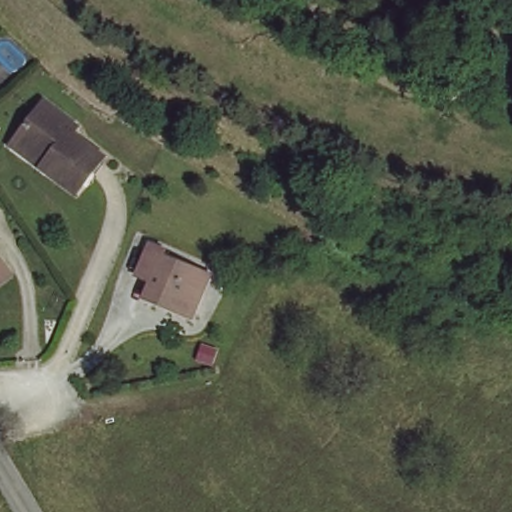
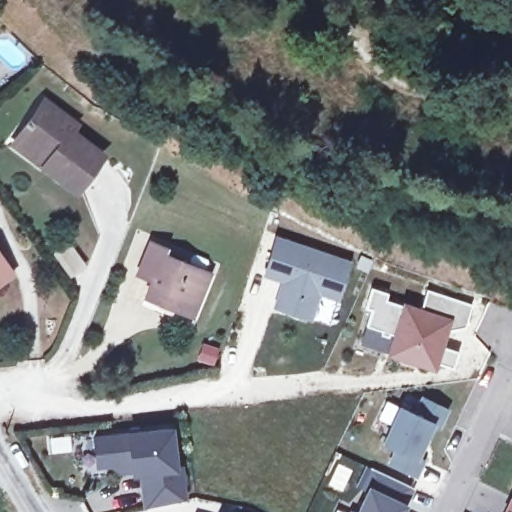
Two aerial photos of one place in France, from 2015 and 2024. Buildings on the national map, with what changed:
unchanged [(101,158),(76,193),(43,169),(48,161),(18,139),(43,105),(74,128),(70,134),(101,158)]
new [(300,316),(279,309),(290,279),(271,272),(282,240),(355,266),(343,301),(324,295),(320,306),(315,321),(300,316)]
unchanged [(179,317),(158,309),(148,305),(156,284),(142,279),(153,251),(168,257),(166,263),(212,281),(198,314),(195,324),(179,317)]
unchanged [(8,276),(0,282),(0,264),(8,276)]
new [(393,296),(391,303),(425,314),(432,293),(477,308),(470,330),(455,333),(450,331),(445,348),(463,354),(457,370),(439,364),(437,370),(395,355),(401,338),(394,335),(393,339),(385,336),(386,333),(371,328),(376,311),(368,309),(374,290),(393,296)]
new [(401,451),(387,445),(404,409),(419,416),(427,400),(452,411),(443,429),(436,425),(421,459),(428,462),(420,478),(394,466),(401,451)]
new [(174,426),(179,466),(183,466),(187,501),(141,509),(137,475),(118,476),(110,468),(95,470),(91,436),(174,426)]
new [(373,492),(368,490),(377,470),(416,489),(405,512),(363,512),(373,492)]
new [(512,510),(512,512),(511,512),(512,510)]

